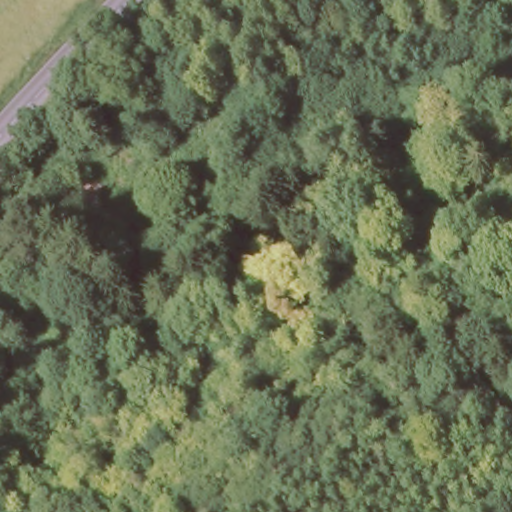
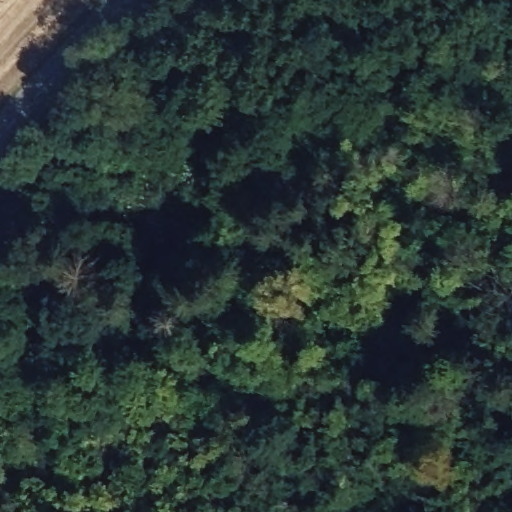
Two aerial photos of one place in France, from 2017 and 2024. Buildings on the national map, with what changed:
unchanged [(202,208),(170,174),(187,153),(224,189),(202,208)]

